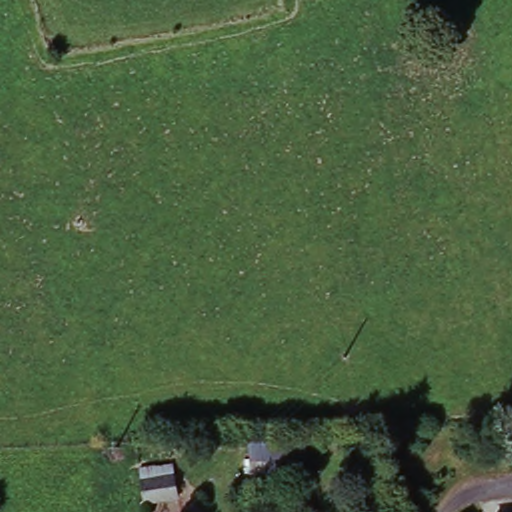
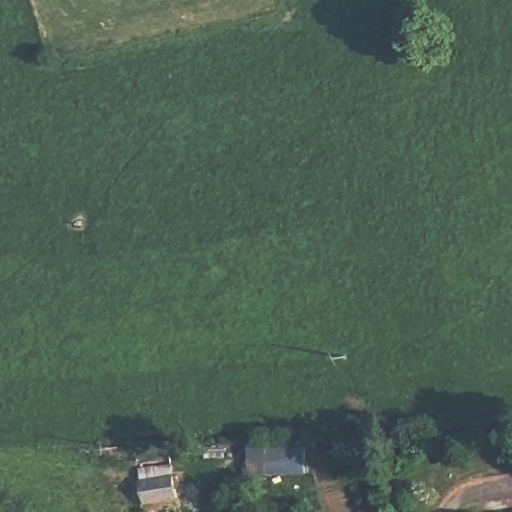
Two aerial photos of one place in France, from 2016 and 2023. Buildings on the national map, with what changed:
unchanged [(247,449),(306,447),(307,480),(279,482),(278,471),(249,473),(247,449)]
unchanged [(141,466),(174,463),(179,502),(146,510),(141,466)]

